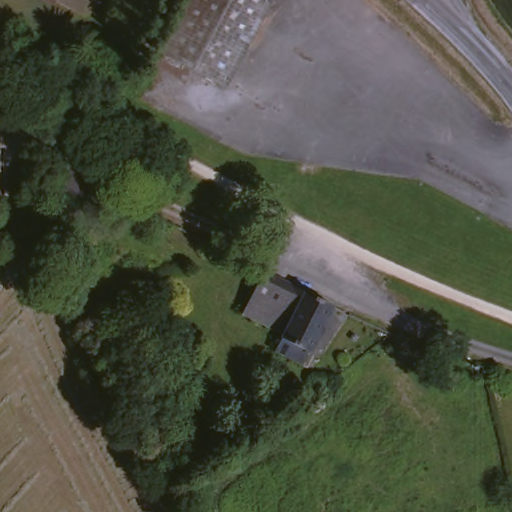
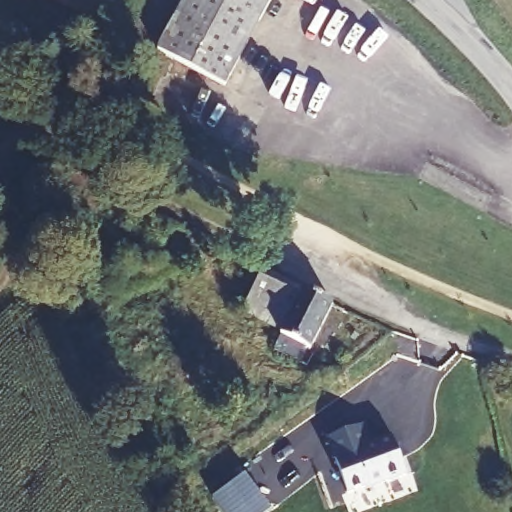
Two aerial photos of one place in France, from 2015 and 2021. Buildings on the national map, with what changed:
unchanged [(56,0),(63,0),(61,3),(56,0)]
unchanged [(166,59),(159,55),(165,45),(188,0),(275,0),(231,80),(225,91),(166,59)]
unchanged [(114,191),(101,213),(86,205),(91,198),(63,185),(71,169),(114,191)]
unchanged [(273,355),(278,340),(281,336),(241,316),(250,296),(260,276),(323,310),(306,350),(303,355),(298,368),(273,355)]
new [(362,426),(370,447),(377,444),(376,442),(391,436),(406,475),(366,490),(364,488),(347,494),(327,439),(362,426)]
new [(264,512),(224,512),(211,495),(244,471),(258,491),(270,508),(264,512)]

